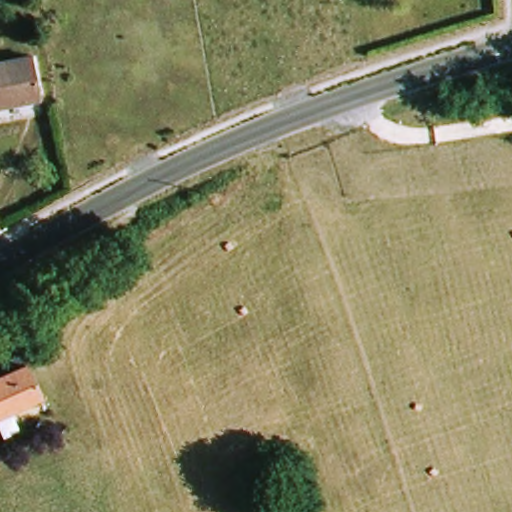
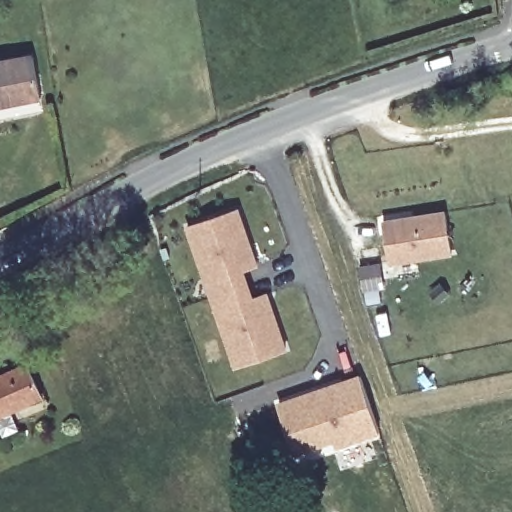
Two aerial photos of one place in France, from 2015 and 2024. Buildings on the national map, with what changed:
unchanged [(39,101),(0,108),(0,63),(31,57),(39,101)]
new [(234,368),(186,226),(240,206),(260,267),(246,271),(255,296),(268,291),(288,351),(234,368)]
new [(388,265),(382,221),(446,210),(452,254),(388,265)]
unchanged [(39,399),(0,415),(0,376),(25,366),(39,399)]
new [(342,382),(361,376),(380,431),(338,446),(336,438),(296,452),(278,404),(325,388),(342,382)]

